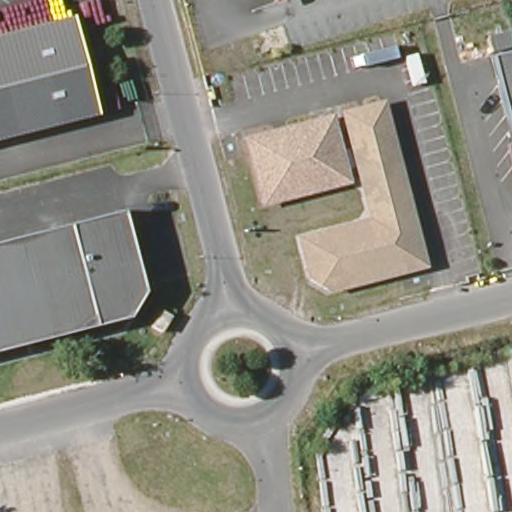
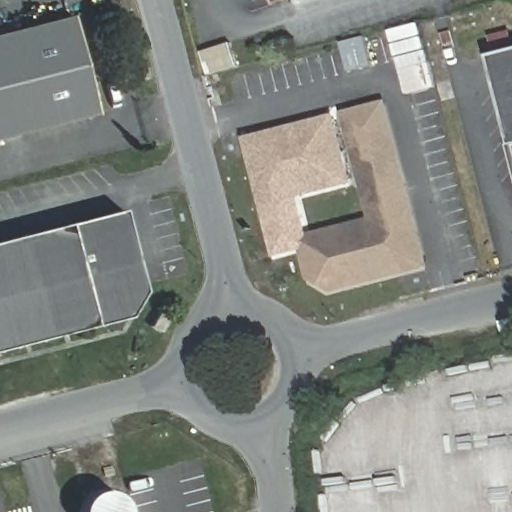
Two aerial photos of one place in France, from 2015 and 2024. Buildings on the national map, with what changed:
unchanged [(99,118),(0,139),(0,36),(76,19),(99,118)]
unchanged [(492,58),(512,53),(512,130),(492,58)]
unchanged [(260,205),(244,140),(383,102),(428,267),(328,290),(306,282),(295,238),(366,214),(353,184),(260,205)]
new [(295,238),(298,250),(272,257),(260,205),(298,197),(308,234),(295,238)]
unchanged [(144,297),(128,323),(0,353),(0,245),(123,215),(144,297)]

